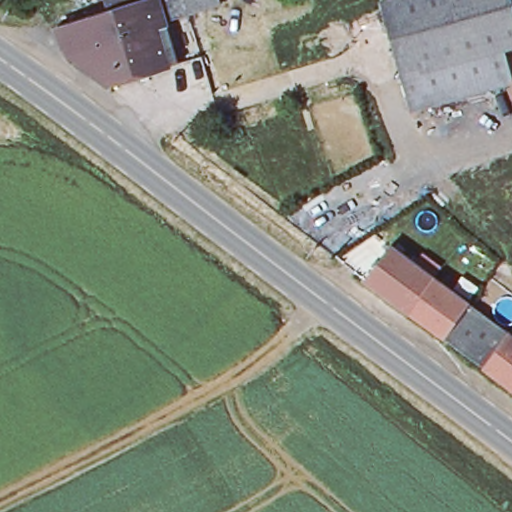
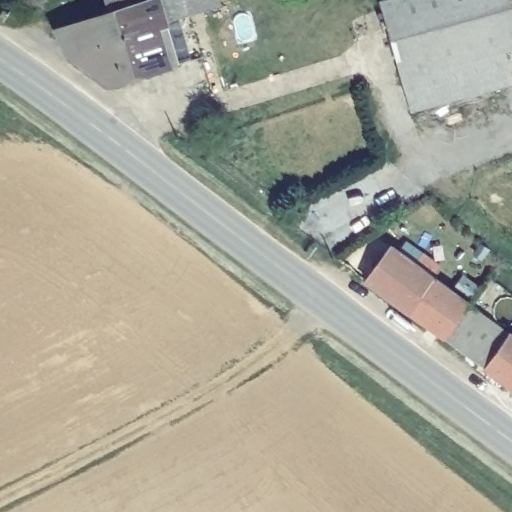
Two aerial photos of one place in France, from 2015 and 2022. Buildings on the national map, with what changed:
unchanged [(187,11),(164,17),(175,67),(103,85),(60,52),(52,29),(108,17),(104,0),(184,0),(187,11)]
unchanged [(184,0),(218,0),(219,4),(187,11),(184,0)]
unchanged [(380,1),(383,0),(512,0),(512,44),(501,47),(400,76),(380,1)]
unchanged [(501,47),(508,79),(409,108),(400,76),(501,47)]
unchanged [(360,277),(386,243),(429,275),(404,309),(360,277)]
unchanged [(404,309),(429,275),(461,299),(436,333),(404,309)]
unchanged [(436,333),(461,299),(502,330),(478,364),(436,333)]
unchanged [(512,337),(512,390),(478,364),(502,330),(512,337)]

